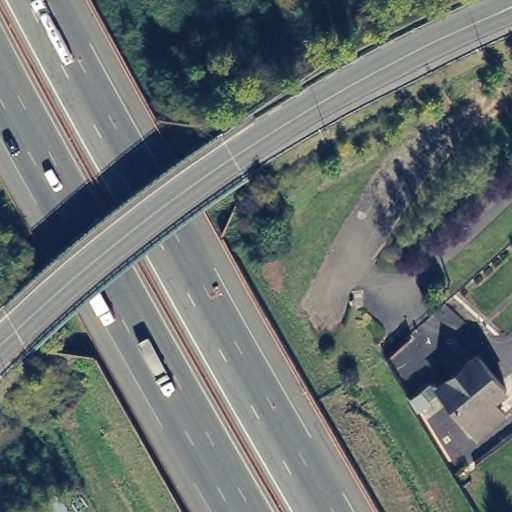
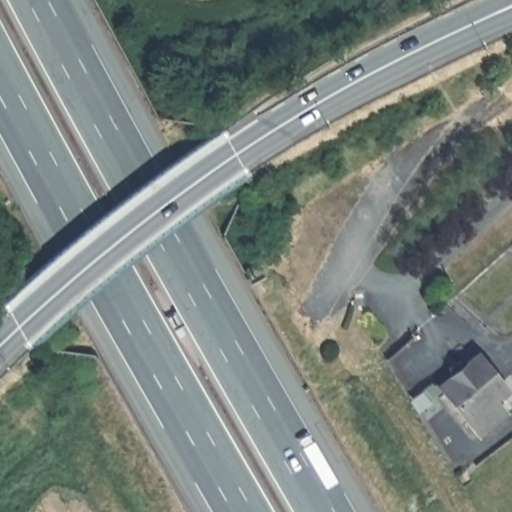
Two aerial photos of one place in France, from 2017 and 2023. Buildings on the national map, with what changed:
unchanged [(509,397),(497,407),(507,421),(481,443),(442,394),(457,383),(451,376),(461,368),(467,374),(481,362),(509,397)]

